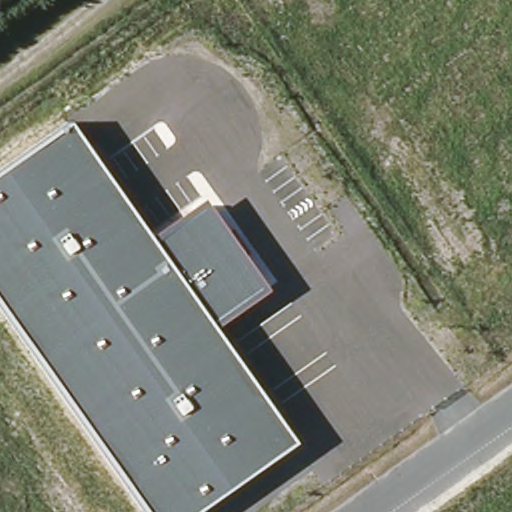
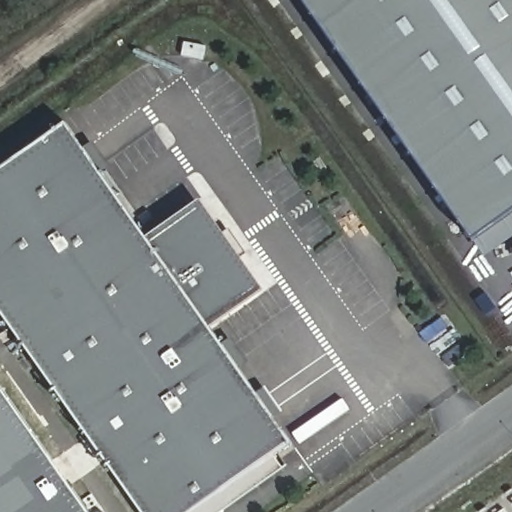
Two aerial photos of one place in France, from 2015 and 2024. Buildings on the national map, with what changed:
new [(464,226),(303,0),(512,0),(512,192),(464,226)]
unchanged [(212,328),(293,442),(193,512),(138,512),(0,312),(0,171),(69,124),(148,238),(202,199),(265,290),(212,328)]
new [(512,192),(512,213),(474,240),(464,226),(512,192)]
new [(0,512),(0,386),(91,512),(0,512)]

